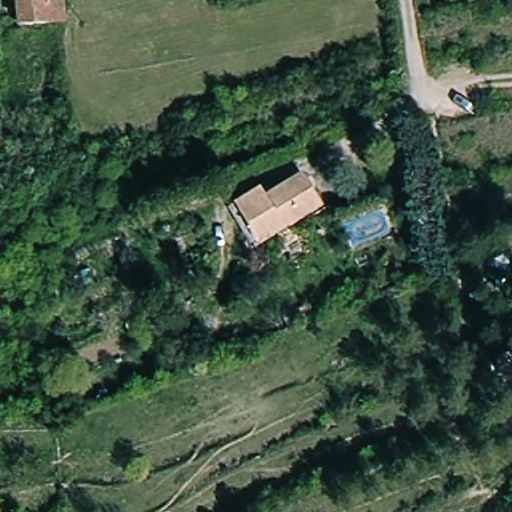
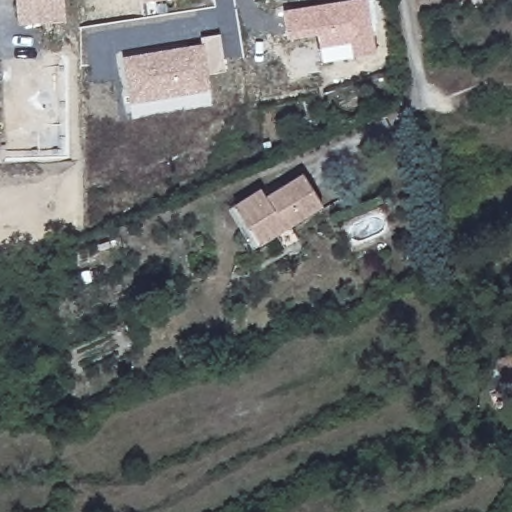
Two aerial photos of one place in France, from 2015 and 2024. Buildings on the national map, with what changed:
unchanged [(20,29),(16,0),(51,0),(69,0),(70,25),(20,29)]
new [(141,0),(172,0),(141,5),(141,0)]
new [(351,44),(322,49),(319,35),(288,41),(284,11),(355,0),(368,0),(376,54),(353,57),(351,44)]
new [(131,105),(122,59),(201,45),(201,38),(220,35),(226,71),(208,75),(211,91),(131,105)]
unchanged [(55,137),(40,140),(39,127),(54,125),(55,137)]
unchanged [(321,210),(258,245),(235,206),(263,190),(266,197),(302,176),(321,210)]
unchanged [(503,386),(493,362),(512,357),(512,383),(503,386)]

